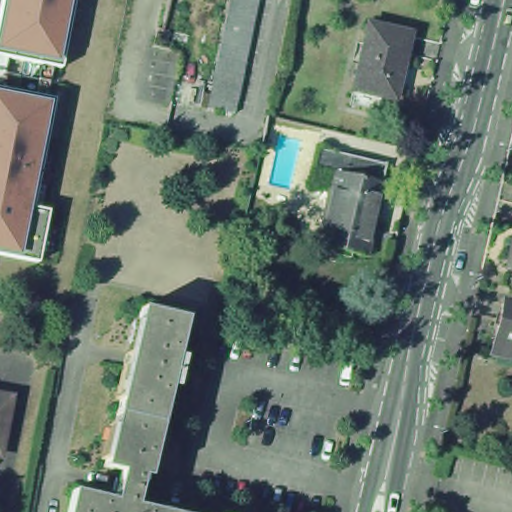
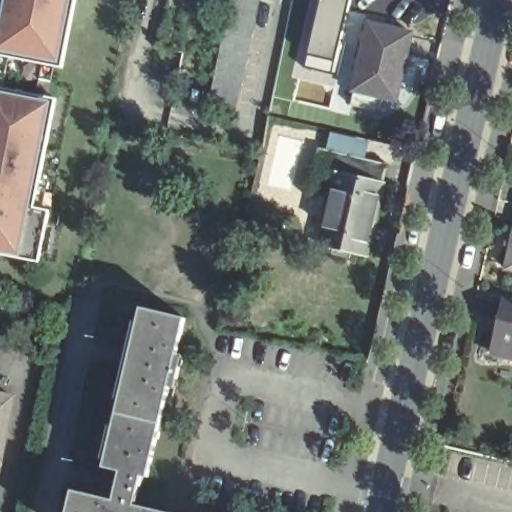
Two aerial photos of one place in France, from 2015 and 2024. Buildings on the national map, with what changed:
unchanged [(0,59),(0,20),(4,0),(80,0),(66,72),(0,59)]
unchanged [(209,83),(211,70),(213,58),(216,45),(219,32),(221,20),(224,7),(226,0),(252,0),(250,12),(247,25),(245,37),(242,50),(240,63),(237,75),(235,88),(232,102),(230,114),(203,109),(206,97),(209,83)]
new [(335,61),(307,55),(319,0),(348,0),(335,61)]
unchanged [(345,104),(348,91),(364,25),(406,35),(390,100),(371,96),(368,109),(345,104)]
unchanged [(195,107),(182,105),(169,102),(173,76),(187,78),(200,81),(195,107)]
unchanged [(40,206),(53,212),(42,265),(0,257),(0,88),(66,103),(40,206)]
unchanged [(338,173),(318,168),(323,148),(391,163),(387,183),(339,171),(338,173)]
unchanged [(338,173),(339,171),(387,183),(371,255),(371,256),(322,245),(338,173)]
unchanged [(509,249),(512,235),(512,273),(503,272),(509,249)]
unchanged [(491,340),(493,341),(502,301),(512,303),(512,357),(488,352),(491,340)]
unchanged [(182,325),(180,324),(172,360),(178,362),(170,392),(165,391),(156,427),(157,427),(157,429),(156,429),(144,479),(145,479),(143,482),(136,480),(130,509),(144,512),(65,512),(70,494),(71,494),(71,495),(110,504),(117,475),(100,470),(100,468),(101,469),(101,463),(98,461),(106,430),(110,431),(116,404),(112,402),(131,325),(135,326),(137,314),(136,313),(137,312),(183,322),(182,325)]
unchanged [(5,401),(0,421),(0,400),(5,401)]

